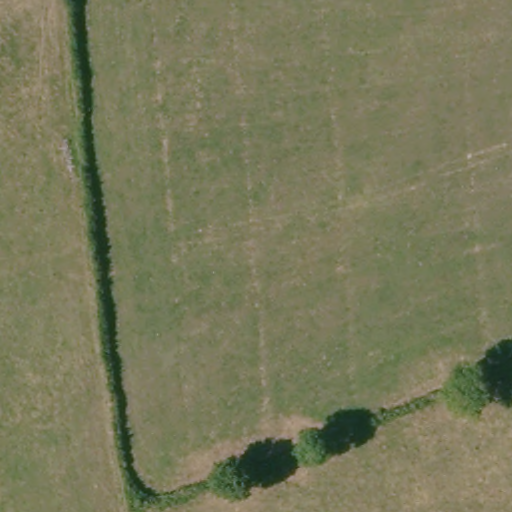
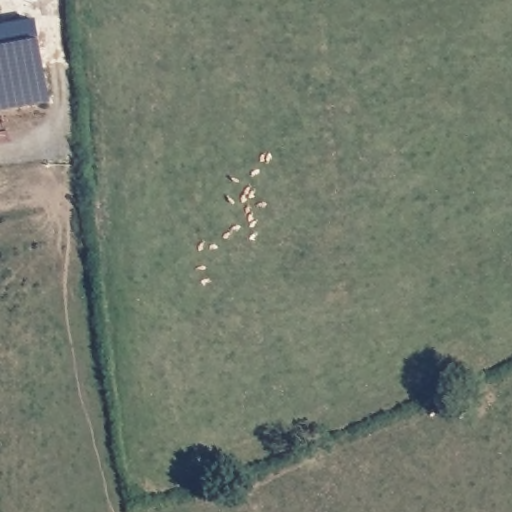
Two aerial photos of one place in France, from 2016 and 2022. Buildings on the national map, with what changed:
new [(36,17),(50,98),(0,107),(0,23),(36,17)]

